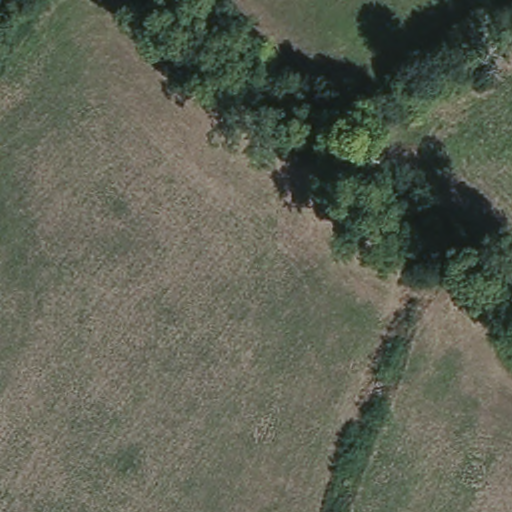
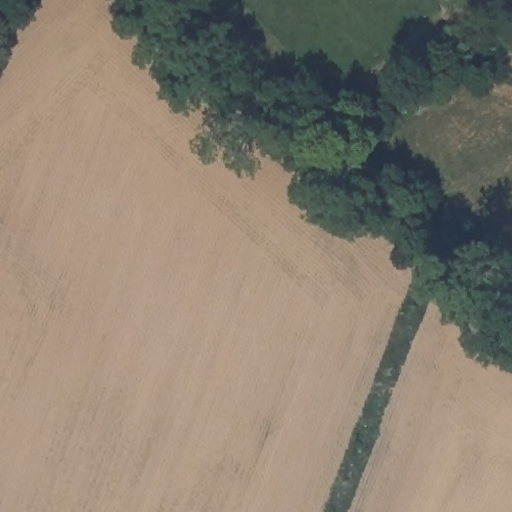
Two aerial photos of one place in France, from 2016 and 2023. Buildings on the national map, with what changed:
[]

